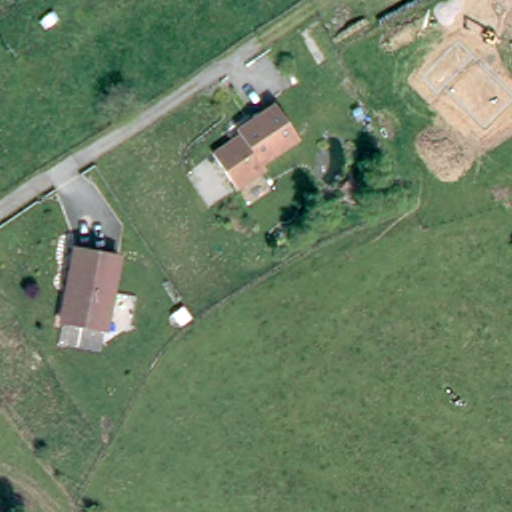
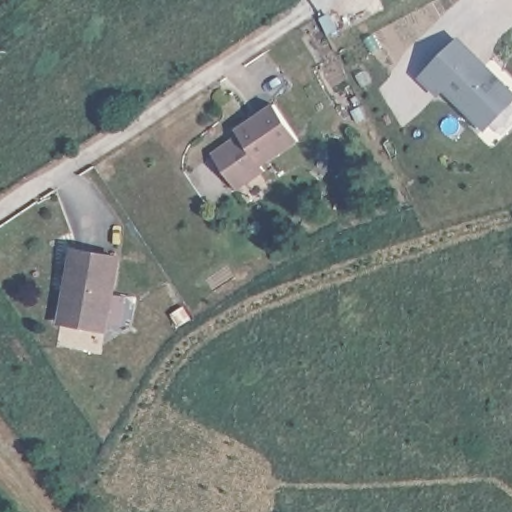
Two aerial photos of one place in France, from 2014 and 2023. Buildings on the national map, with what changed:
new [(438,97),(419,76),(460,37),(512,90),(512,104),(484,131),(445,91),(438,97)]
unchanged [(238,187),(215,152),(240,134),(236,129),(273,104),(297,140),(260,165),(263,170),(238,187)]
unchanged [(74,253),(120,261),(106,331),(62,322),(74,253)]

